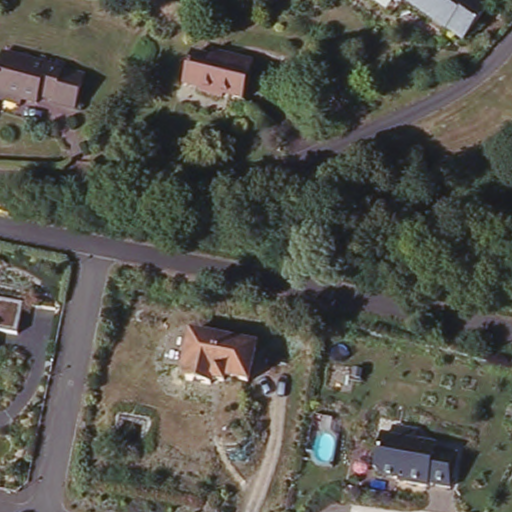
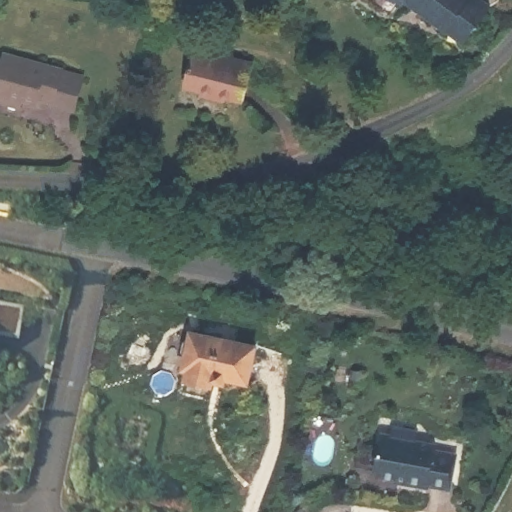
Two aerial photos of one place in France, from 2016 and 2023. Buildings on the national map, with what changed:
unchanged [(475,0),(483,6),(460,41),(397,0),(475,0)]
unchanged [(0,52),(51,66),(53,69),(76,75),(66,107),(44,101),(45,98),(30,94),(29,97),(14,92),(12,98),(0,95),(0,52)]
unchanged [(239,104),(219,99),(218,102),(197,97),(198,94),(182,90),(190,57),(209,62),(211,56),(226,60),(247,65),(239,104)]
unchanged [(15,337),(0,334),(0,299),(21,303),(15,337)]
unchanged [(225,378),(222,386),(180,377),(187,327),(254,340),(248,382),(225,378)]
unchanged [(396,485),(397,476),(375,475),(379,433),(430,442),(429,450),(453,453),(445,492),(396,485)]

